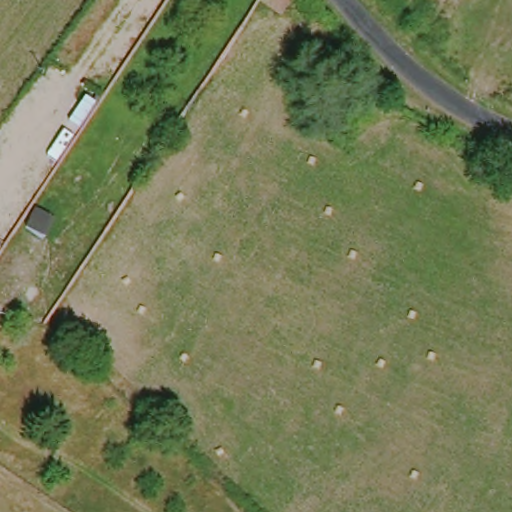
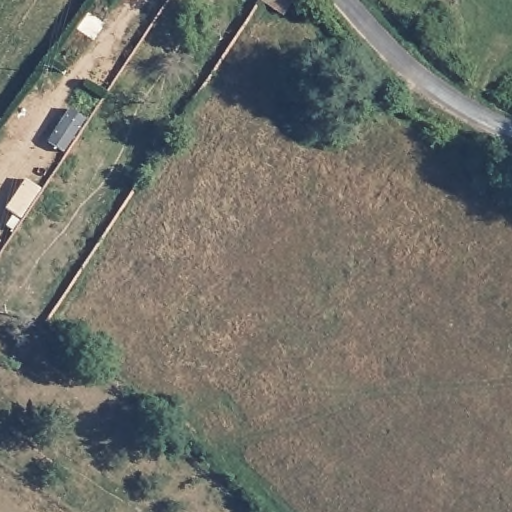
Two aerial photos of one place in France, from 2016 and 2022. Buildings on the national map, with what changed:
unchanged [(286,23),(261,4),(263,0),(301,0),(286,23)]

